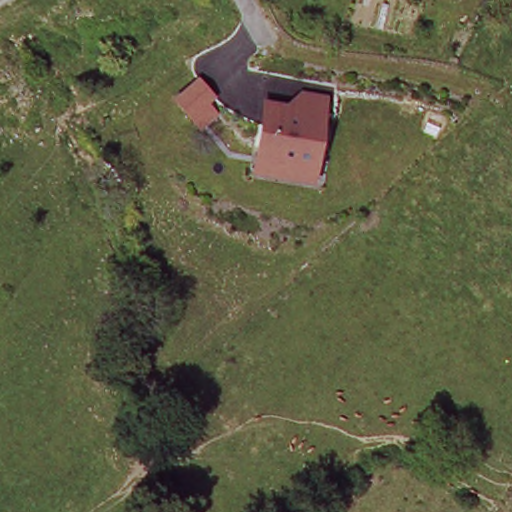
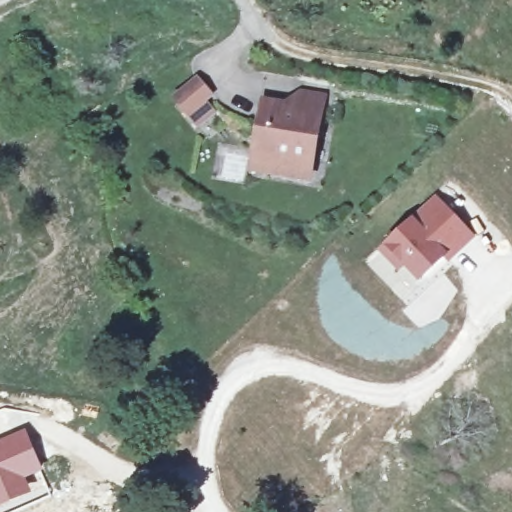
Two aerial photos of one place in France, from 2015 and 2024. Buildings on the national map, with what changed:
unchanged [(199,100),(205,108),(190,121),(179,109),(166,94),(189,74),(202,90),(206,94),(199,100)]
unchanged [(329,94),(310,177),(250,169),(261,100),(292,100),(297,89),(329,94)]
new [(397,259),(392,264),(375,246),(429,194),(465,232),(447,249),(444,245),(438,251),(418,270),(412,275),(397,259)]
new [(44,472),(28,479),(35,494),(0,508),(0,439),(26,428),(44,472)]

